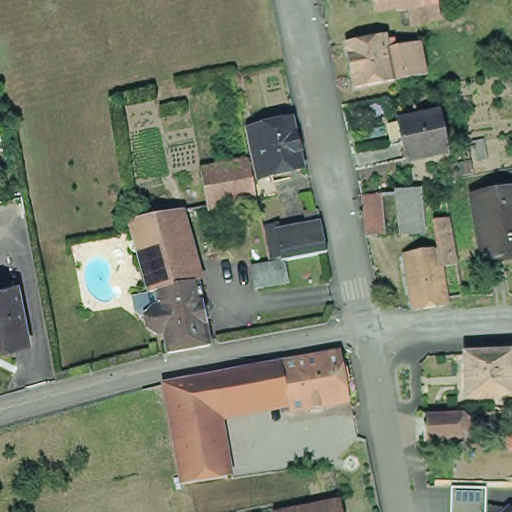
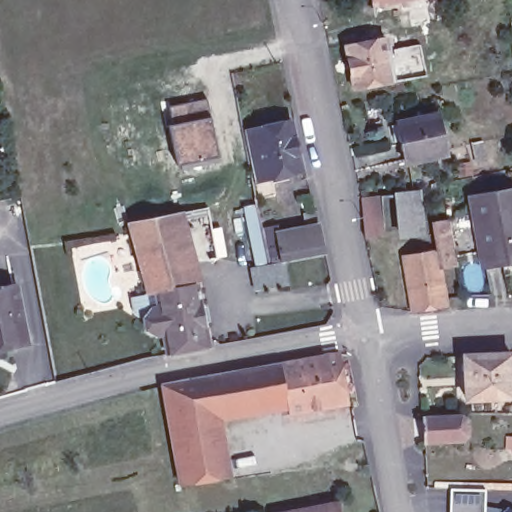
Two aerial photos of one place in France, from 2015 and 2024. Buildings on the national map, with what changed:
unchanged [(398,19),(397,14),(375,19),(373,7),(370,8),(369,0),(434,0),(436,11),(439,26),(411,31),(408,16),(398,19)]
unchanged [(335,47),(375,40),(376,45),(383,43),(385,50),(411,44),(417,76),(384,83),(344,91),(335,47)]
new [(206,98),(221,156),(175,163),(162,109),(206,98)]
unchanged [(302,170),(255,181),(259,203),(203,216),(192,169),(246,156),(239,123),(289,111),(302,170)]
unchanged [(445,150),(438,151),(404,159),(396,121),(432,114),(438,113),(445,150)]
unchanged [(495,262),(474,265),(461,197),(484,194),(509,189),(512,205),(512,258),(495,262)]
unchanged [(380,190),(385,231),(365,232),(360,194),(380,190)]
unchanged [(418,195),(422,235),(397,236),(395,196),(418,195)]
unchanged [(156,283),(150,284),(130,214),(141,212),(141,214),(171,208),(190,276),(156,283)]
unchanged [(310,246),(273,253),(271,253),(266,228),(310,219),(313,245),(310,246)]
unchanged [(437,252),(440,252),(435,223),(447,222),(455,265),(440,268),(446,308),(411,313),(407,288),(402,258),(437,252)]
unchanged [(281,263),(283,263),(288,284),(262,289),(256,290),(252,269),(273,265),(281,263)]
unchanged [(148,320),(145,307),(151,299),(158,298),(156,283),(190,276),(197,275),(208,336),(175,344),(167,344),(164,324),(156,326),(148,320)]
unchanged [(30,348),(5,353),(0,353),(0,293),(20,290),(30,348)]
unchanged [(512,368),(512,376),(510,377),(511,397),(465,400),(462,356),(509,353),(510,368),(512,368)]
unchanged [(282,364),(340,354),(349,402),(290,413),(287,397),(282,364)]
unchanged [(282,364),(287,397),(215,410),(226,477),(181,484),(164,384),(282,364)]
unchanged [(455,420),(461,425),(462,441),(457,446),(417,448),(416,423),(455,420)]
unchanged [(512,437),(512,450),(510,450),(510,437),(512,437)]
demolished [(226,479),(272,472),(275,484),(226,491),(225,479),(226,479)]
unchanged [(454,489),(489,490),(488,507),(511,511),(512,510),(512,512),(454,512),(454,489)]
unchanged [(334,501),(336,512),(275,512),(334,501)]

